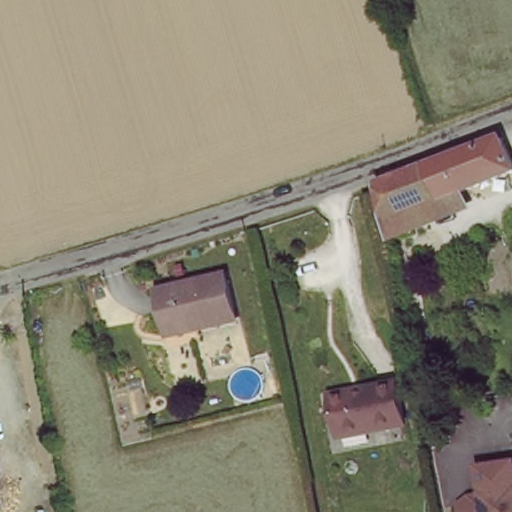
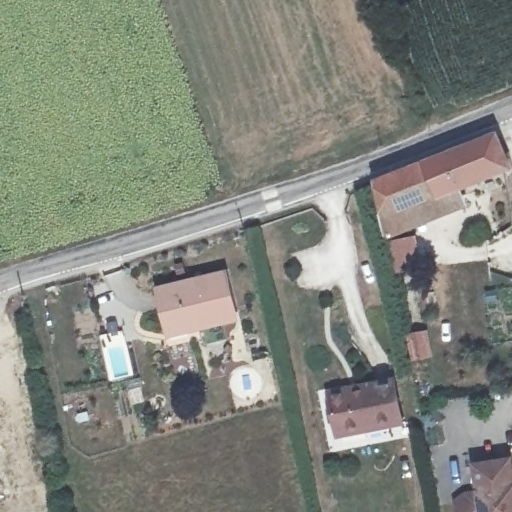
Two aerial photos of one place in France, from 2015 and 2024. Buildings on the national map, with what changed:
unchanged [(380,181),(407,170),(460,149),(473,144),(495,135),(509,168),(430,200),(382,219),(375,183),(380,181)]
unchanged [(225,275),(236,319),(170,336),(161,302),(160,292),(225,275)]
unchanged [(325,394),(390,380),(400,422),(335,436),(325,394)]
unchanged [(453,504),(463,496),(476,494),(472,467),(507,462),(510,480),(501,486),(501,490),(511,489),(512,496),(512,512),(455,512),(453,504)]

